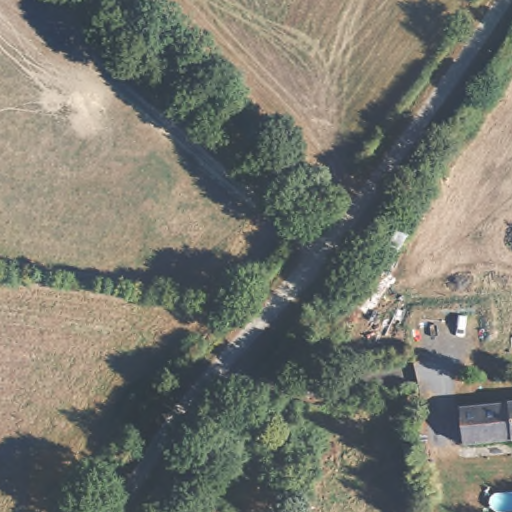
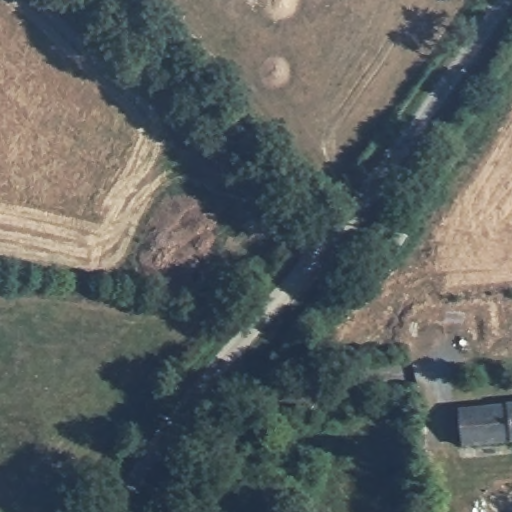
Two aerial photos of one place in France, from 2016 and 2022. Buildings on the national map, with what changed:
unchanged [(461,443),(458,409),(512,403),(512,438),(461,443)]

